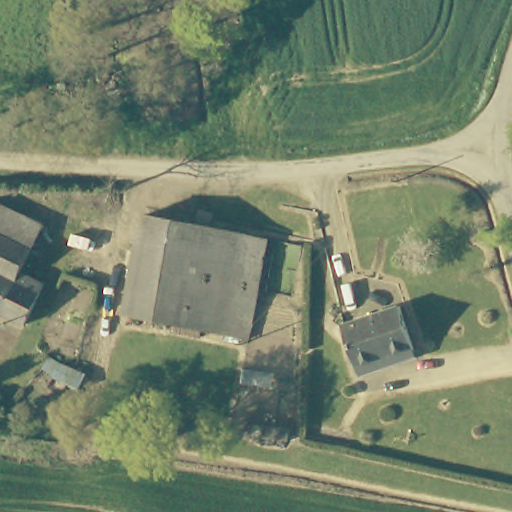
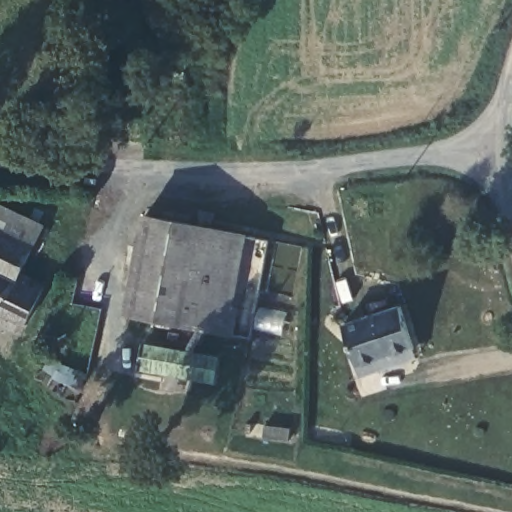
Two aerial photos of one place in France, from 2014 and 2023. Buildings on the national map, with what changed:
unchanged [(1,199),(47,220),(25,272),(51,285),(33,324),(0,309),(0,202),(1,199)]
unchanged [(124,316),(142,218),(267,241),(249,339),(124,316)]
unchanged [(342,327),(401,307),(418,360),(359,378),(342,327)]
unchanged [(51,378),(58,363),(86,377),(78,392),(51,378)]

